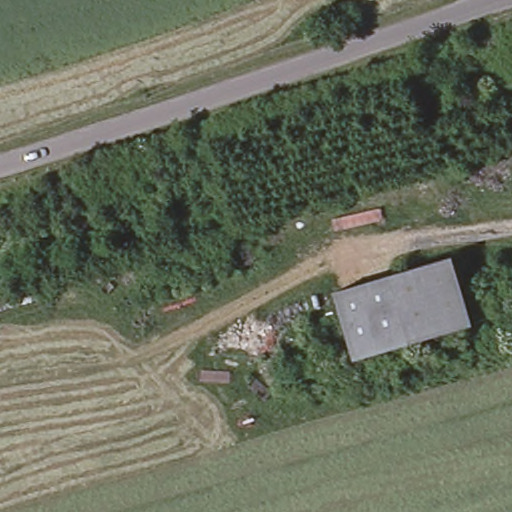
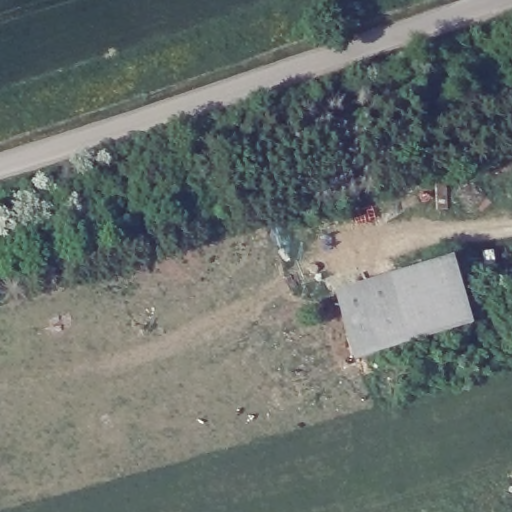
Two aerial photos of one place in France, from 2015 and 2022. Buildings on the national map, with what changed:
unchanged [(330,290),(447,257),(452,273),(335,307),(330,290)]
unchanged [(452,273),(461,304),(344,338),(335,307),(452,273)]
unchanged [(461,304),(467,324),(350,358),(344,338),(461,304)]

